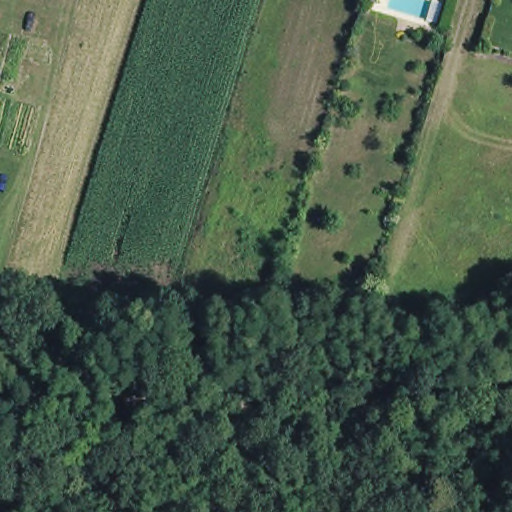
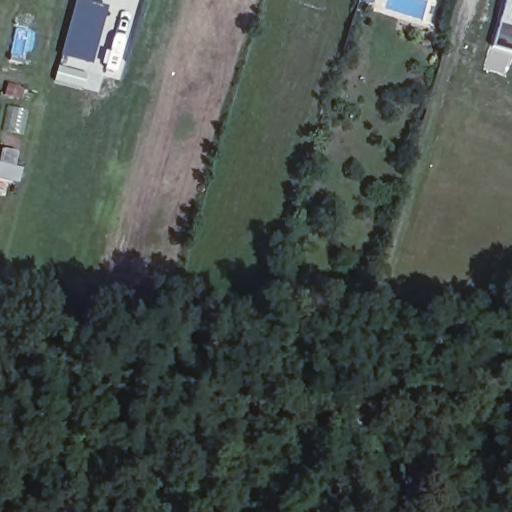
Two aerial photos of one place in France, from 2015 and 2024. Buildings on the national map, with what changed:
new [(93,65),(63,56),(76,0),(93,0),(109,4),(93,65)]
new [(508,0),(512,0),(512,53),(494,48),(508,0)]

